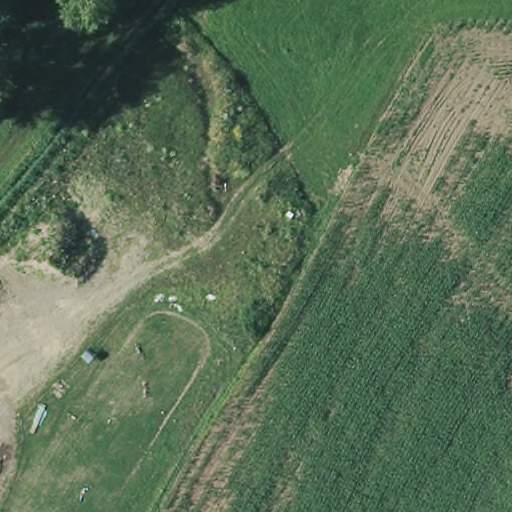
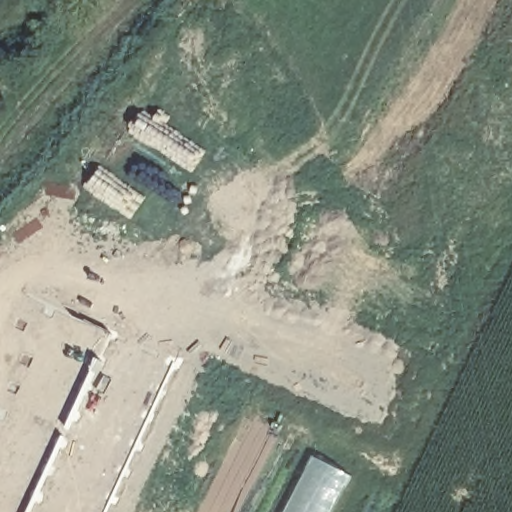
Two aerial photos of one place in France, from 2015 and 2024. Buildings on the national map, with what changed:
new [(352,477),(335,512),(281,512),(310,458),(352,477)]

